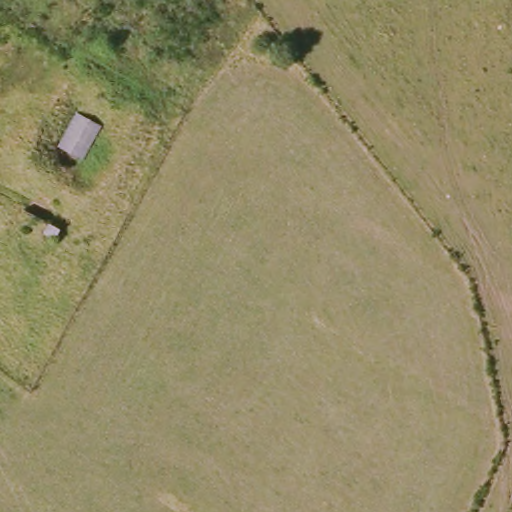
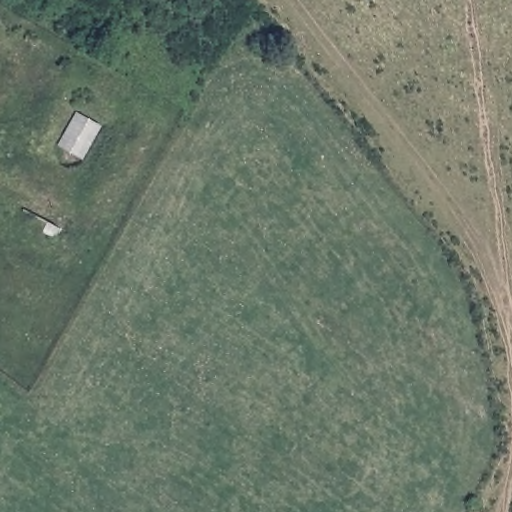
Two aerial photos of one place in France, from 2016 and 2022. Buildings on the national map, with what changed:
unchanged [(66,146),(77,117),(98,124),(85,153),(66,146)]
unchanged [(52,244),(57,232),(68,235),(64,248),(52,244)]

